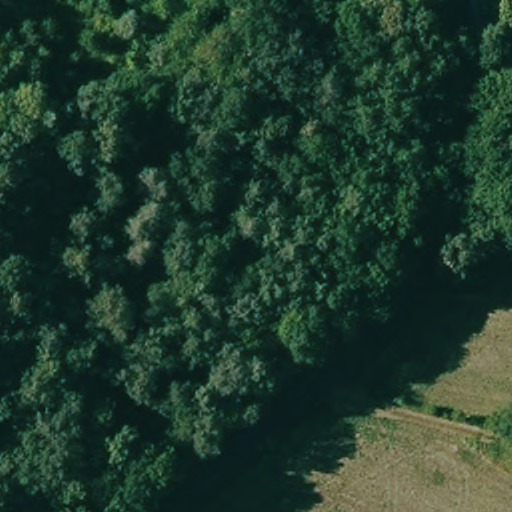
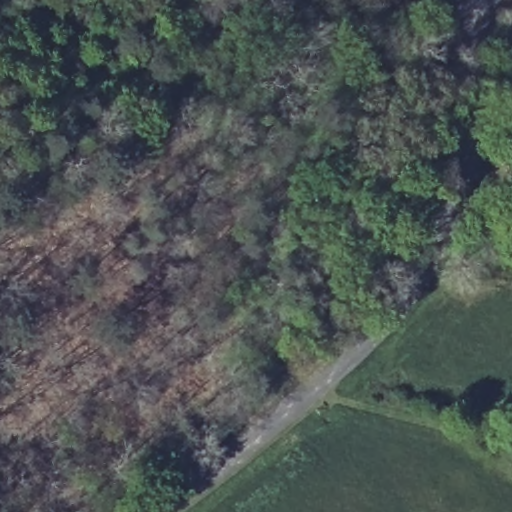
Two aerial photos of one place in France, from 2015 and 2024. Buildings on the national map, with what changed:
[]

